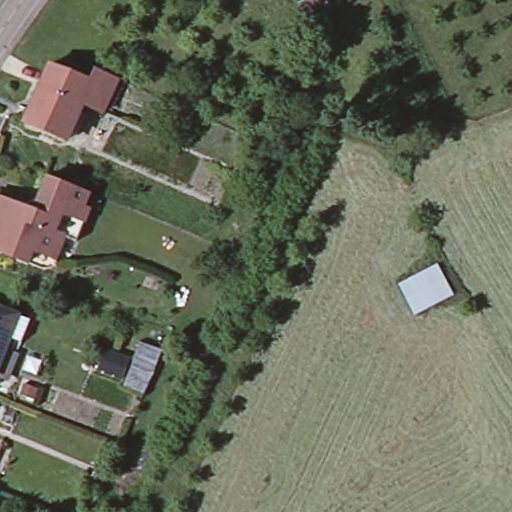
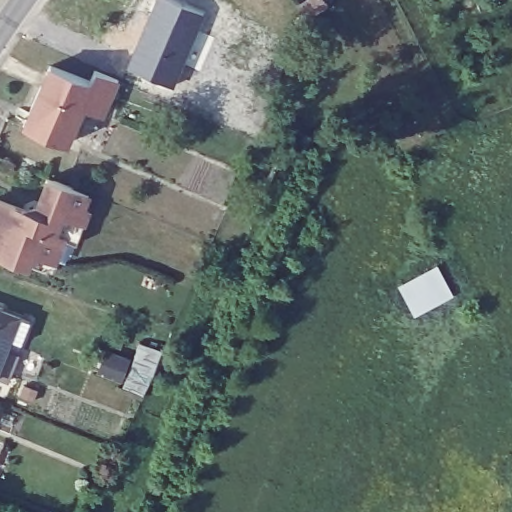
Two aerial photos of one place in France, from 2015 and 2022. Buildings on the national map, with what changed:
new [(202,17),(173,90),(129,72),(158,2),(202,17)]
unchanged [(57,67),(95,81),(100,71),(103,72),(106,73),(122,80),(108,113),(107,116),(88,107),(47,88),(57,67)]
unchanged [(72,144),(30,124),(47,88),(88,107),(72,144)]
unchanged [(0,190),(35,205),(50,170),(97,191),(80,230),(67,229),(57,256),(40,254),(37,261),(0,247),(0,190)]
unchanged [(438,261),(453,293),(418,313),(399,282),(438,261)]
unchanged [(27,323),(18,342),(7,338),(0,355),(0,313),(15,318),(27,323)]

